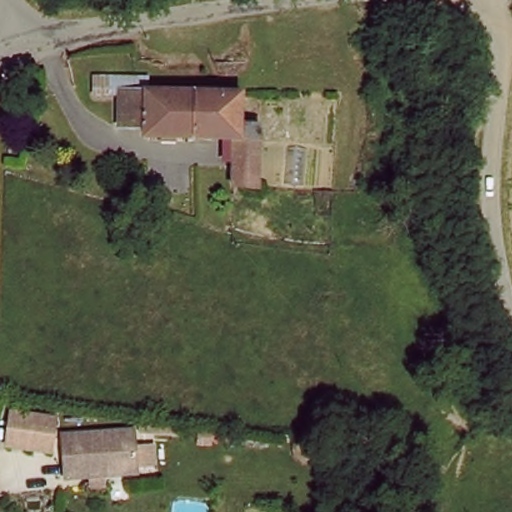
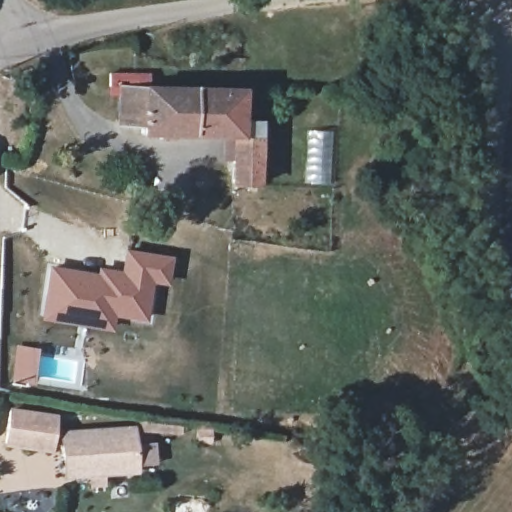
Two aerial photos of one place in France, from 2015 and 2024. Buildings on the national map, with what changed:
unchanged [(147,86),(240,87),(240,119),(260,120),(261,182),(232,183),(230,135),(142,134),(142,125),(114,125),(114,91),(92,91),(92,73),(114,74),(147,73),(147,86)]
new [(47,265),(94,271),(95,266),(119,269),(123,249),(172,256),(167,285),(152,283),(144,321),(113,317),(112,329),(38,319),(47,265)]
new [(15,343),(38,347),(34,386),(10,383),(15,343)]
unchanged [(53,417),(49,449),(5,442),(9,410),(53,417)]
unchanged [(88,484),(88,474),(67,475),(62,476),(61,456),(60,433),(133,428),(135,471),(103,473),(103,483),(88,484)]

